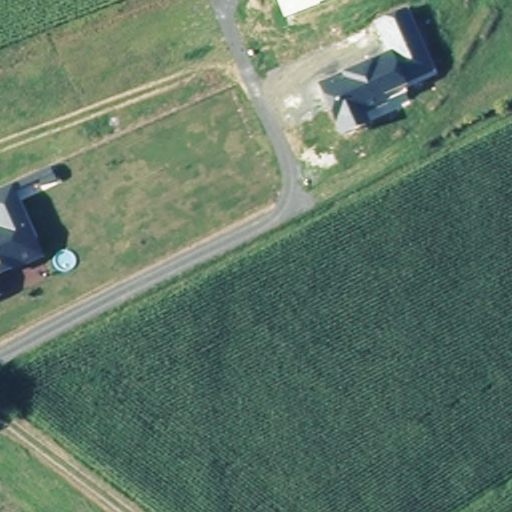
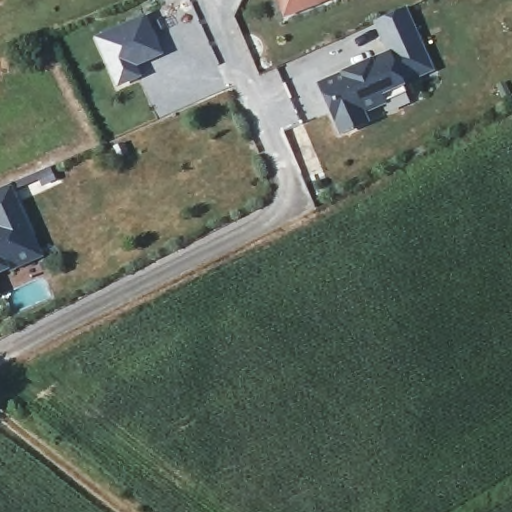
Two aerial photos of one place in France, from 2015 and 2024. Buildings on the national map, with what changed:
unchanged [(315,10),(279,23),(270,0),(338,0),(315,8),(315,10)]
unchanged [(435,69),(402,83),(406,91),(385,100),(387,104),(366,112),(371,124),(342,137),(336,123),(330,125),(313,88),(387,53),(375,22),(408,5),(435,69)]
new [(164,58),(137,68),(141,78),(118,88),(95,38),(146,16),(164,58)]
unchanged [(43,256),(0,278),(0,189),(11,183),(43,256)]
unchanged [(0,296),(0,293),(1,295),(0,296)]

